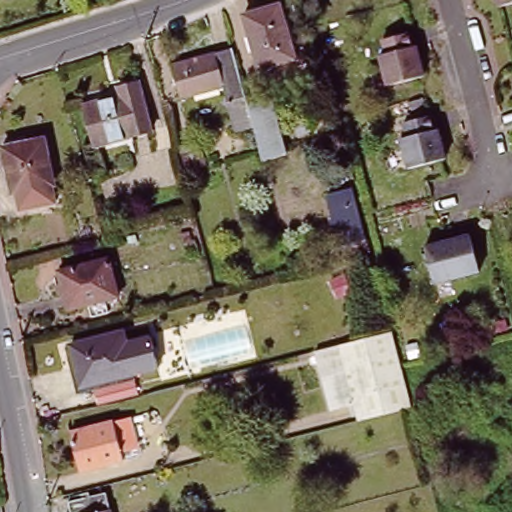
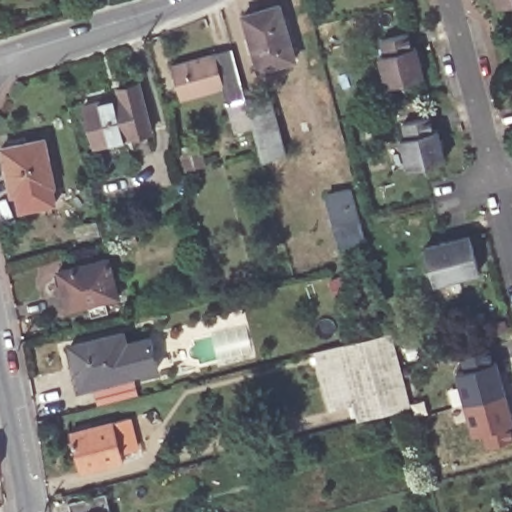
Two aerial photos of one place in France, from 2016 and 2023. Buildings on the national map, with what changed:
unchanged [(500,0),(512,0),(512,5),(502,8),(500,0)]
unchanged [(245,21),(281,11),(295,65),(259,75),(245,21)]
unchanged [(407,30),(412,44),(415,43),(422,72),(387,82),(378,52),(385,51),(381,36),(407,30)]
unchanged [(243,106),(250,130),(231,135),(220,91),(177,101),(167,66),(228,50),(243,106)]
unchanged [(512,78),(512,82),(511,78),(512,78)]
unchanged [(86,105),(120,95),(119,88),(140,82),(153,132),(97,147),(86,105)]
unchanged [(267,100),(282,156),(258,164),(250,130),(243,106),(267,100)]
unchanged [(430,117),(434,131),(437,130),(445,160),(409,170),(401,140),(407,139),(403,124),(430,117)]
unchanged [(0,143),(40,134),(52,181),(50,182),(53,199),(17,207),(13,190),(8,191),(0,155),(0,143)]
unchanged [(328,211),(352,205),(366,256),(342,262),(328,211)]
unchanged [(470,231),(480,267),(435,280),(425,244),(470,231)]
unchanged [(60,272),(110,260),(118,300),(68,311),(60,272)]
unchanged [(135,375),(82,388),(72,346),(125,333),(135,375)]
unchanged [(392,334),(412,410),(360,422),(347,371),(323,377),(317,352),(392,334)]
new [(488,347),(495,362),(498,361),(512,413),(512,423),(508,423),(512,432),(512,436),(485,445),(480,431),(471,433),(456,371),(464,370),(460,355),(488,347)]
unchanged [(70,434),(128,418),(136,448),(122,451),(125,462),(81,473),(70,434)]
unchanged [(0,458),(0,455),(1,458),(0,458)]
unchanged [(69,504),(107,495),(111,512),(71,512),(69,504)]

